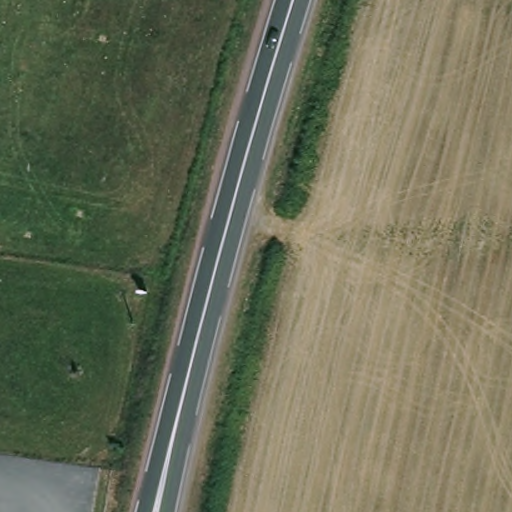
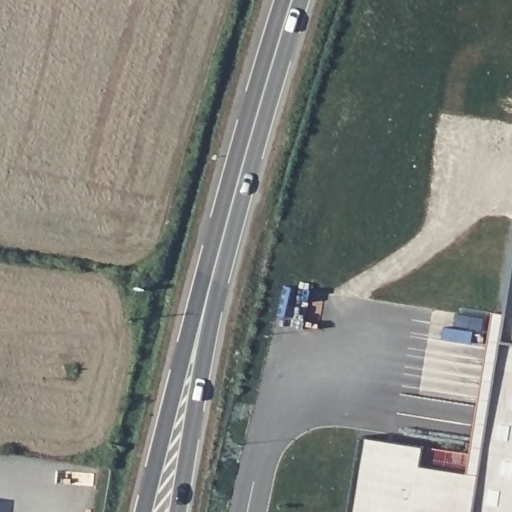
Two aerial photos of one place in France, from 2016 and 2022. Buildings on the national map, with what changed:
new [(424,448),(422,467),(484,475),(512,302),(512,512),(352,512),(364,438),(424,448)]

